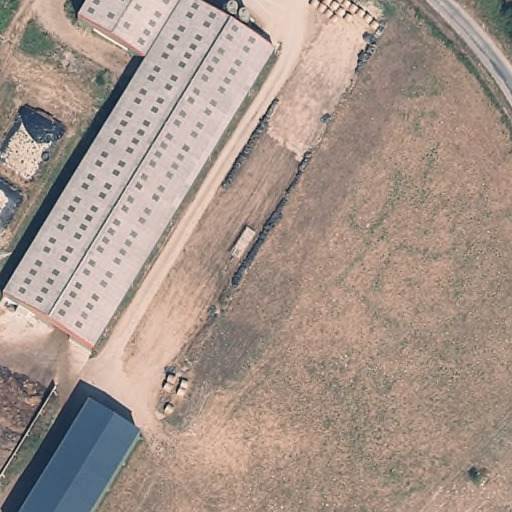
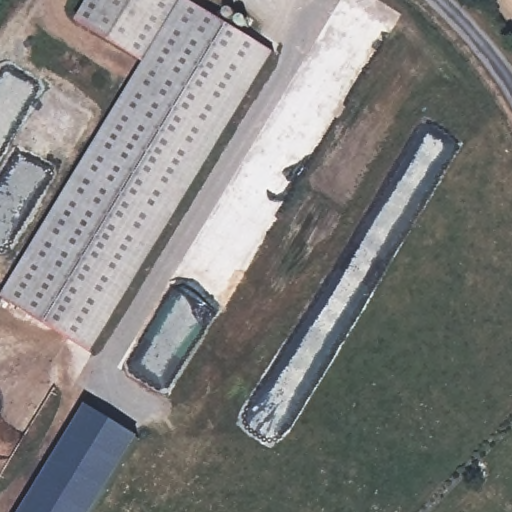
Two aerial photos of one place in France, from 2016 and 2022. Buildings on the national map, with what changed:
unchanged [(138,279),(92,354),(3,299),(57,211),(146,65),(78,23),(91,0),(186,0),(275,54),(138,279)]
unchanged [(140,437),(94,512),(24,512),(87,407),(140,437)]

